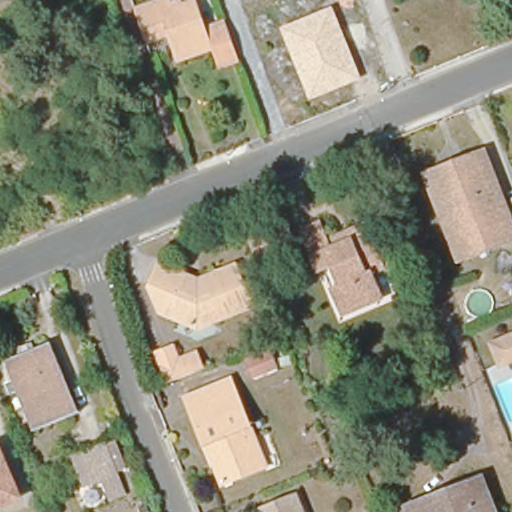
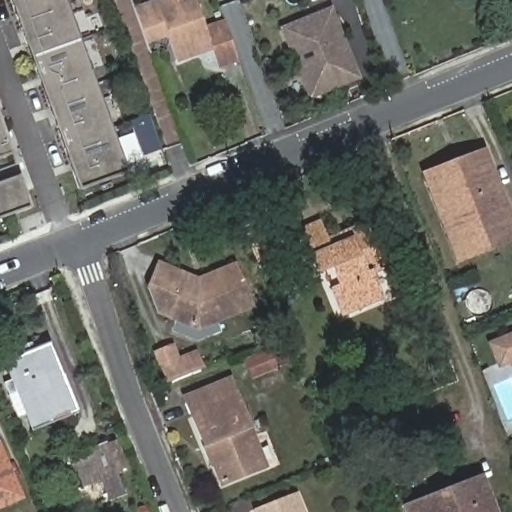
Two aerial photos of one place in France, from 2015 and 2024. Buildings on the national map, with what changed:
new [(66,0),(129,173),(80,191),(12,0),(66,0)]
unchanged [(141,42),(130,11),(132,11),(162,0),(192,0),(203,30),(222,23),(234,58),(215,65),(209,47),(173,61),(163,35),(157,37),(143,42),(141,42)]
unchanged [(360,80),(310,100),(280,28),(332,7),(360,80)]
new [(0,158),(0,122),(11,154),(0,158)]
unchanged [(512,229),(512,233),(456,254),(429,183),(424,169),(461,155),(481,147),(512,229)]
new [(0,183),(21,175),(34,208),(0,220),(0,183)]
unchanged [(322,217),(329,233),(364,218),(382,259),(371,264),(387,302),(342,321),(302,225),(322,217)]
unchanged [(287,220),(294,238),(275,245),(274,240),(268,227),(287,220)]
unchanged [(254,309),(198,331),(159,318),(148,290),(155,269),(156,270),(188,280),(199,284),(204,282),(239,268),(254,309)]
unchanged [(495,364),(487,343),(512,333),(512,358),(495,364)]
unchanged [(49,342),(78,412),(73,415),(31,432),(4,361),(17,355),(15,349),(25,345),(28,351),(44,344),(49,342)]
unchanged [(155,383),(144,354),(161,347),(168,362),(179,358),(187,355),(194,372),(185,375),(159,385),(156,386),(155,384),(155,383)]
unchanged [(267,350),(274,368),(249,377),(244,359),(267,350)]
unchanged [(199,454),(176,396),(223,377),(258,465),(216,481),(209,464),(204,466),(199,454)]
unchanged [(73,456),(101,444),(121,495),(105,502),(97,481),(85,485),(73,456)]
unchanged [(0,508),(0,451),(19,499),(0,508)]
unchanged [(494,512),(410,512),(409,509),(406,500),(443,487),(480,474),(494,512)]
unchanged [(249,511),(292,493),(300,512),(250,512),(249,511)]

